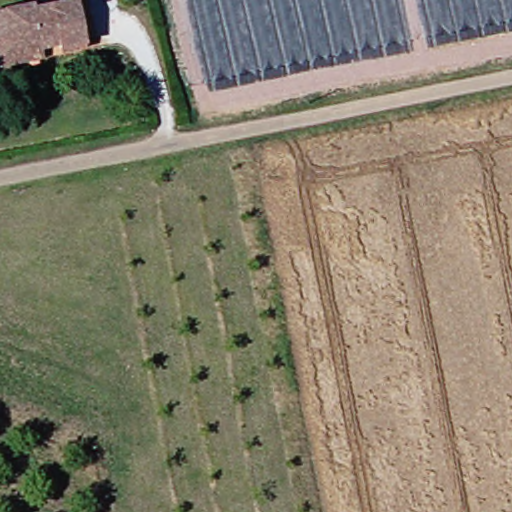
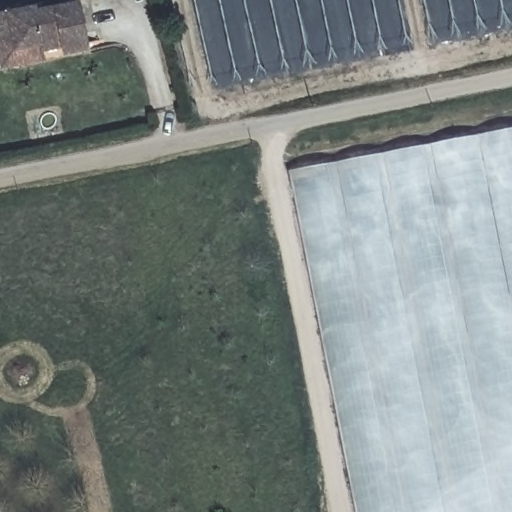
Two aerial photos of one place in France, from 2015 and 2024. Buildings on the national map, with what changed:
unchanged [(36,9),(80,1),(88,42),(41,49),(39,39),(15,45),(13,32),(0,35),(0,10),(35,4),(36,9)]
unchanged [(3,67),(0,52),(0,35),(13,32),(15,45),(39,39),(41,49),(88,42),(89,51),(3,67)]
new [(291,172),(512,127),(512,512),(356,512),(291,172)]

